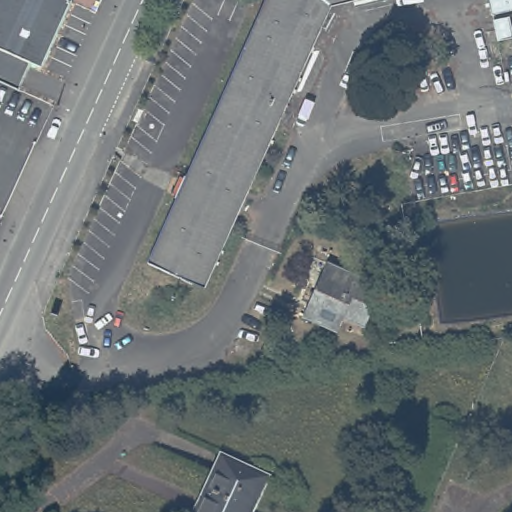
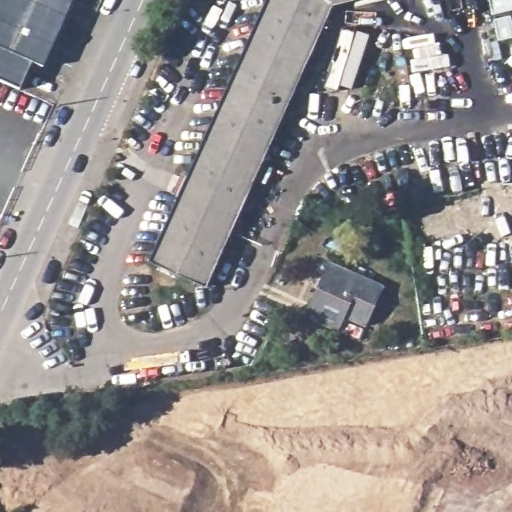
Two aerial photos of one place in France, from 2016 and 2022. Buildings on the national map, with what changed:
unchanged [(68,5),(71,7),(41,72),(30,67),(18,92),(0,84),(0,0),(67,0),(68,5)]
unchanged [(190,180),(272,0),(357,0),(335,5),(316,46),(294,94),(281,124),(250,191),(242,210),(208,287),(152,263),(153,261),(182,196),(177,194),(184,177),(190,180)]
unchanged [(512,11),(496,15),(493,0),(512,0),(512,11)]
unchanged [(512,19),(512,38),(502,40),(498,21),(512,19)]
unchanged [(326,263),(382,288),(364,326),(343,317),(336,330),(302,316),(326,263)]
demolished [(268,475),(252,512),(193,512),(220,453),(268,475)]

